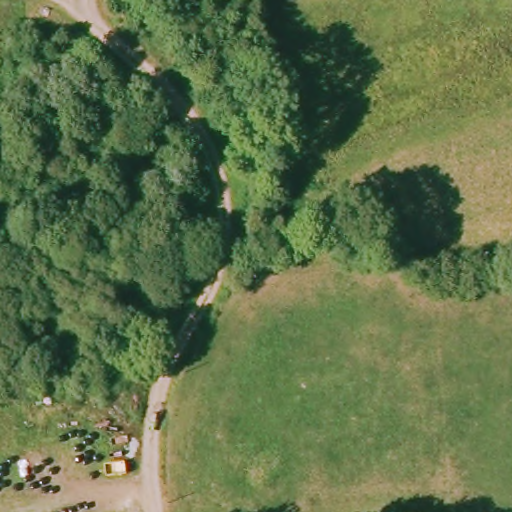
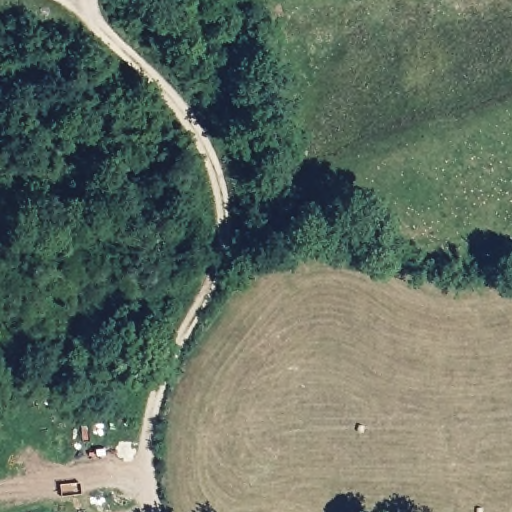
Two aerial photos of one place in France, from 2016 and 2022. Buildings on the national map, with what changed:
[]

